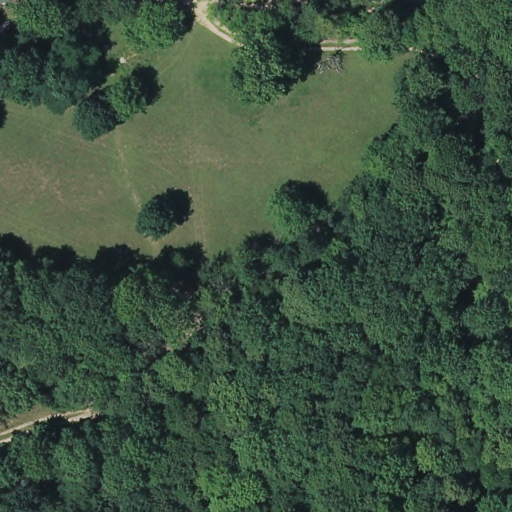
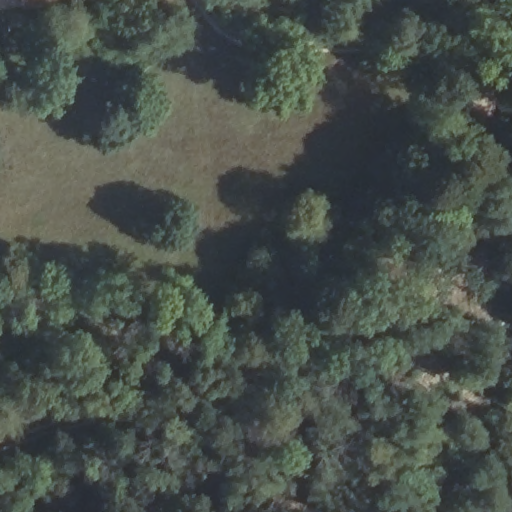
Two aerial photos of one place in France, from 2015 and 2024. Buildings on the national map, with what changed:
unchanged [(0,9),(0,0),(39,0),(0,9)]

